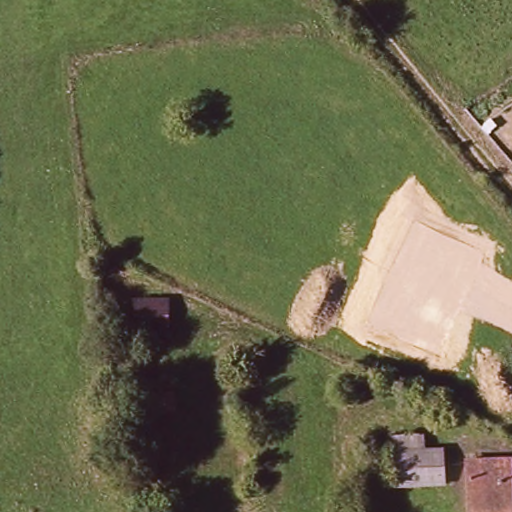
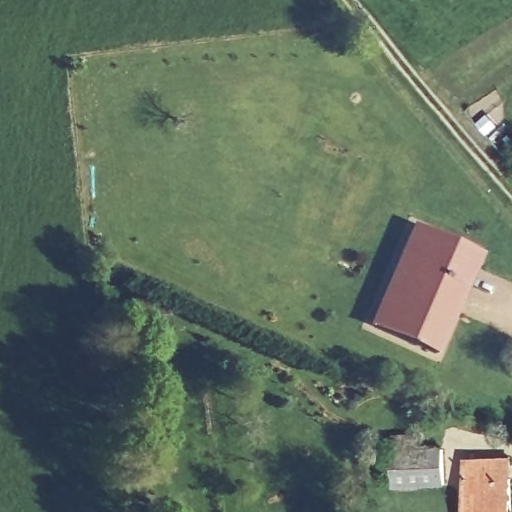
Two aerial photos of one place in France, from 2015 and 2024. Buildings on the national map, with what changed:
new [(440,356),(370,327),(413,225),(483,256),(440,356)]
unchanged [(176,298),(177,333),(144,337),(143,299),(176,298)]
unchanged [(402,452),(451,450),(452,485),(403,487),(402,452)]
unchanged [(479,512),(477,487),(477,479),(476,461),(480,461),(512,460),(512,512),(479,512)]

